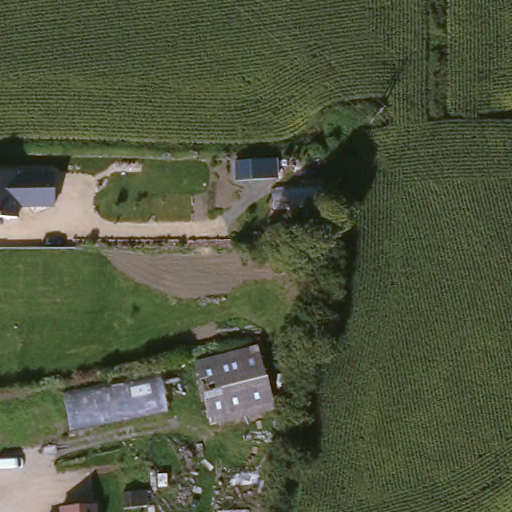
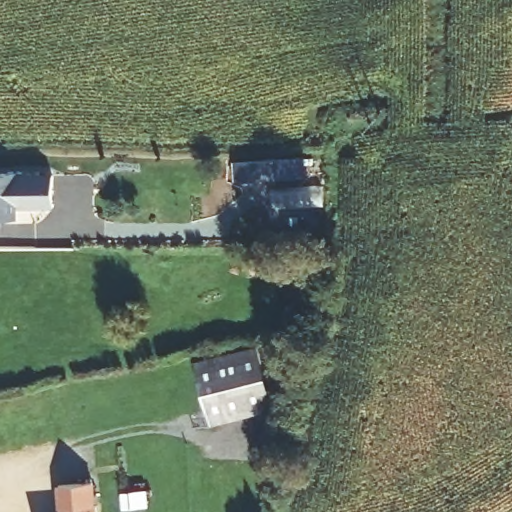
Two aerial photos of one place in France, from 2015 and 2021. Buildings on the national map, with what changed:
unchanged [(234,181),(234,161),(277,160),(278,179),(234,181)]
unchanged [(19,170),(57,170),(58,201),(19,202),(20,215),(3,215),(3,220),(0,220),(0,168),(19,168),(19,170)]
unchanged [(209,426),(194,363),(258,346),(274,410),(209,426)]
demolished [(163,372),(168,408),(68,430),(63,391),(163,372)]
unchanged [(98,505),(98,512),(64,512),(64,507),(98,505)]

